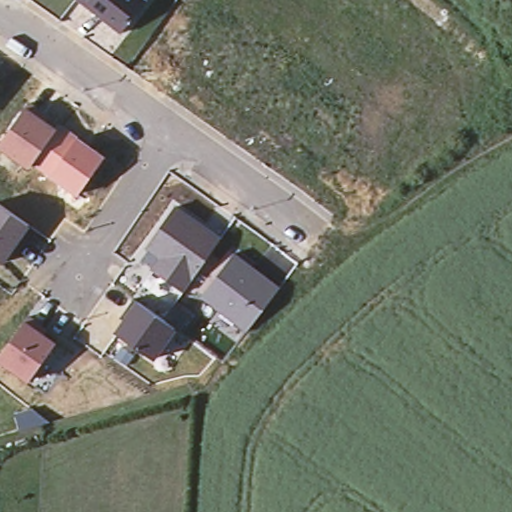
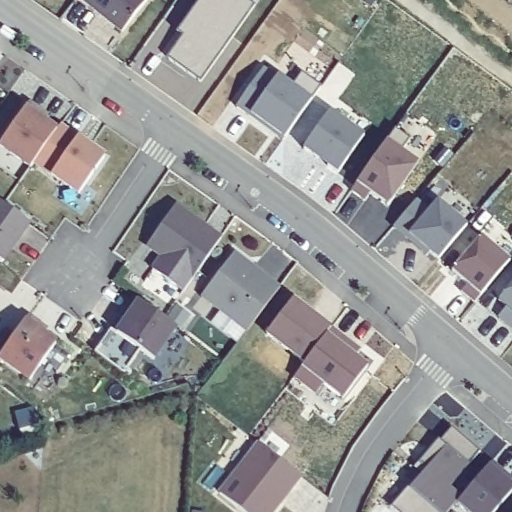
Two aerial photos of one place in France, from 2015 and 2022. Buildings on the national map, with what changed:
unchanged [(76,0),(146,0),(120,36),(76,0)]
new [(201,81),(168,57),(185,36),(178,31),(201,0),(246,0),(254,7),(201,81)]
new [(311,97),(284,134),(251,111),(249,113),(235,105),(264,65),(311,97)]
unchanged [(78,197),(33,166),(30,170),(0,150),(0,144),(26,105),(106,157),(78,197)]
new [(364,137),(337,173),(304,148),(331,112),(364,137)]
new [(418,160),(389,202),(371,190),(365,200),(352,191),(388,137),(418,160)]
new [(469,227),(439,260),(409,236),(394,227),(418,198),(433,207),(438,201),(469,227)]
unchanged [(222,236),(184,292),(150,271),(159,257),(146,248),(178,202),(222,236)]
unchanged [(4,266),(0,263),(0,203),(31,224),(4,266)]
new [(510,257),(475,301),(463,290),(469,281),(454,267),(482,233),(510,257)]
unchanged [(284,287),(249,336),(200,298),(235,250),(284,287)]
new [(506,306),(499,300),(512,285),(512,329),(499,317),(506,306)]
unchanged [(181,328),(156,364),(112,333),(134,298),(181,328)]
new [(331,327),(304,362),(269,333),(294,299),(331,327)]
unchanged [(31,387),(0,365),(0,354),(24,319),(60,342),(31,387)]
new [(361,349),(357,353),(369,362),(343,395),(324,382),(316,392),(295,376),(304,362),(331,327),(361,349)]
new [(479,451),(469,462),(471,463),(450,487),(461,497),(445,512),(402,512),(394,505),(409,487),(429,466),(420,460),(439,438),(442,440),(452,428),(479,451)]
new [(220,495),(258,445),(300,477),(273,512),(242,512),(220,495)]
new [(493,460),(512,477),(512,492),(496,512),(468,512),(457,503),(461,497),(493,460)]

